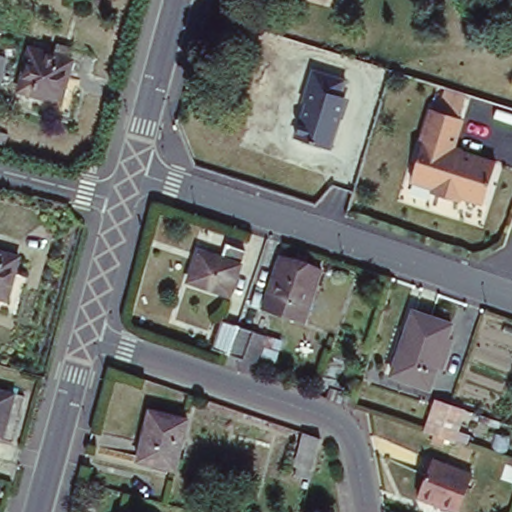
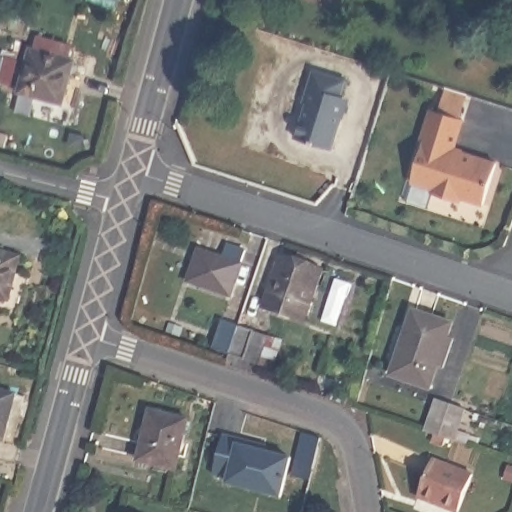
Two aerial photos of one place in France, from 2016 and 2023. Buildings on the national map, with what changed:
unchanged [(32,43),(73,54),(62,97),(21,86),(32,43)]
unchanged [(0,73),(0,45),(8,47),(0,73)]
unchanged [(342,78),(336,95),(345,98),(331,149),(297,138),(307,106),(303,106),(314,69),(342,78)]
unchanged [(465,118),(454,147),(497,161),(482,198),(462,192),(454,197),(436,190),(433,182),(412,175),(426,135),(424,135),(435,107),(465,118)]
unchanged [(7,288),(3,287),(0,299),(0,242),(19,247),(7,288)]
unchanged [(199,256),(220,262),(225,249),(244,255),(228,300),(187,285),(199,256)]
unchanged [(290,261),(292,254),(303,258),(300,265),(316,271),(300,319),(258,306),(275,256),(290,261)]
unchanged [(405,340),(400,339),(412,306),(450,319),(445,333),(450,335),(440,362),(435,362),(428,383),(395,372),(405,340)]
unchanged [(249,361),(246,369),(230,364),(232,355),(217,350),(227,321),(242,326),(261,333),(260,334),(271,338),(265,355),(262,365),(249,361)]
unchanged [(5,438),(0,437),(0,387),(19,392),(5,438)]
unchanged [(327,390),(356,399),(354,408),(325,397),(327,390)]
unchanged [(435,401),(463,411),(453,442),(425,432),(435,401)]
unchanged [(145,410),(181,419),(168,470),(132,460),(145,410)]
unchanged [(295,466),(305,433),(321,439),(312,470),(295,466)]
new [(216,451),(232,454),(235,440),(291,453),(281,495),(211,478),(216,451)]
unchanged [(436,460),(477,476),(463,512),(458,512),(422,498),(436,460)]

